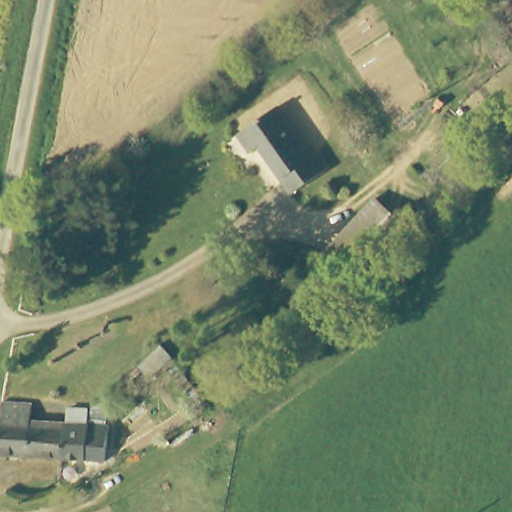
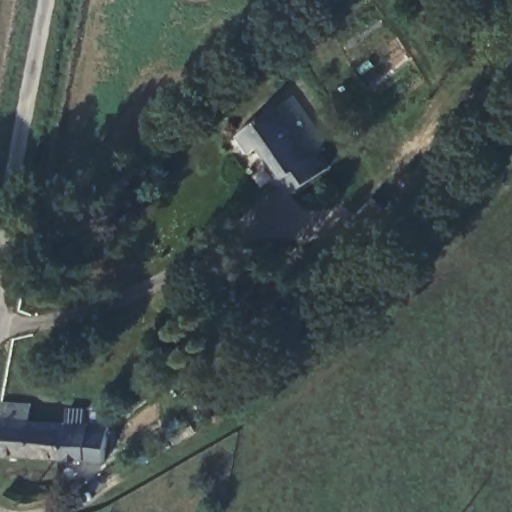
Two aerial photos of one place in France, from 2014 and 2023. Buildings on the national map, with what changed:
unchanged [(235,137),(275,110),(308,161),(314,157),(324,173),(287,197),(255,149),(247,155),(235,137)]
unchanged [(356,283),(327,257),(360,221),(388,247),(356,283)]
unchanged [(27,406),(28,423),(56,424),(55,459),(0,456),(0,403),(27,406)]
unchanged [(97,461),(55,459),(56,424),(60,424),(60,409),(81,409),(81,425),(97,426),(97,461)]

